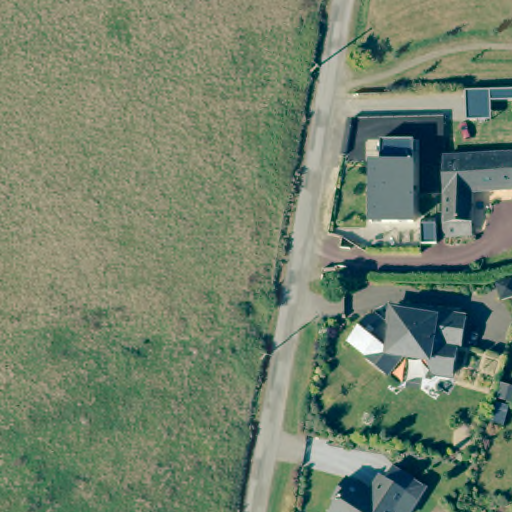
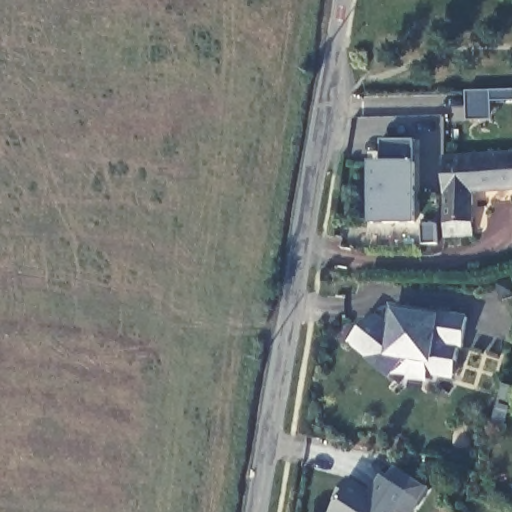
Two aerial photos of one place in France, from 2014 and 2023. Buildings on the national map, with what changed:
unchanged [(467,91),(512,89),(512,101),(491,101),(492,119),(467,120),(467,91)]
unchanged [(382,163),(384,138),(417,140),(417,163),(417,224),(373,225),(373,163),(382,163)]
unchanged [(512,157),(512,193),(472,194),(473,239),(448,241),(445,162),(512,157)]
unchanged [(368,324),(376,321),(392,335),(399,326),(401,313),(467,324),(462,353),(458,352),(455,382),(432,379),(428,367),(404,363),(388,382),(367,365),(369,363),(350,347),(368,324)]
unchanged [(332,512),(338,502),(335,499),(347,479),(360,487),(362,494),(368,493),(371,494),(382,476),(386,479),(395,467),(416,480),(426,487),(417,500),(420,501),(412,512),(332,512)]

